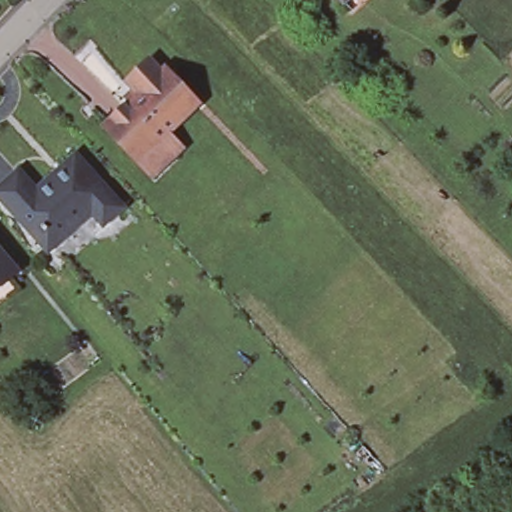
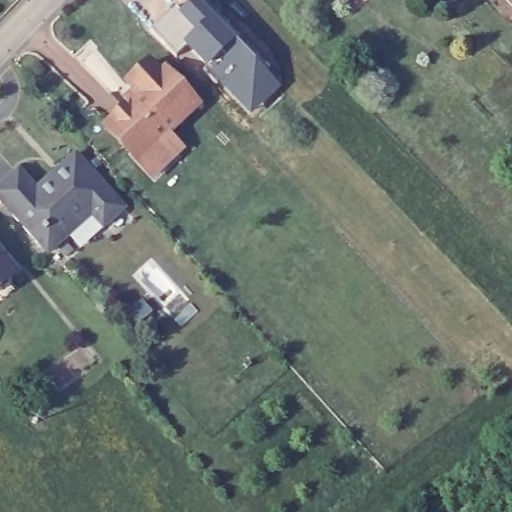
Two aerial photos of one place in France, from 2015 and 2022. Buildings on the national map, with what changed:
new [(253,117),(190,48),(180,56),(151,25),(176,4),(180,10),(191,0),(201,0),(282,85),(253,117)]
unchanged [(341,0),(343,0),(341,1),(341,0)]
unchanged [(147,68),(157,78),(159,76),(190,110),(164,135),(131,100),(134,98),(125,89),(147,68)]
unchanged [(148,180),(133,164),(101,130),(131,100),(164,135),(162,150),(171,159),(148,180)]
unchanged [(18,173),(35,192),(75,157),(124,210),(103,230),(91,217),(48,255),(0,203),(0,189),(18,173)]
unchanged [(21,281),(0,299),(0,255),(21,281)]

